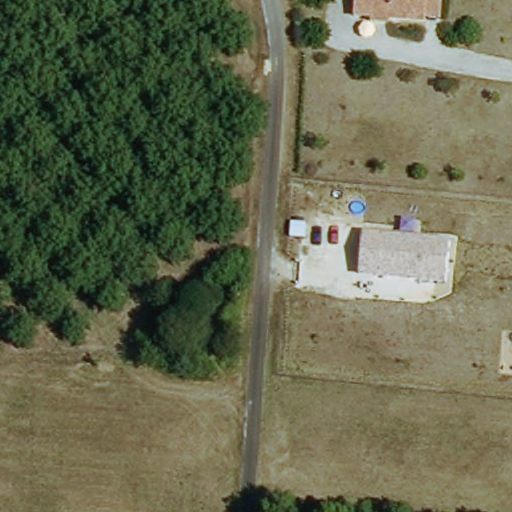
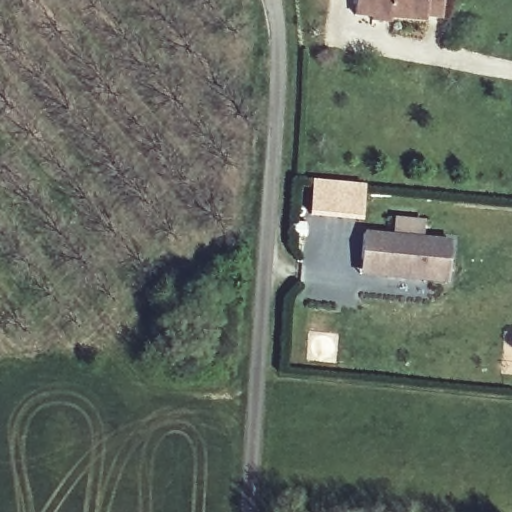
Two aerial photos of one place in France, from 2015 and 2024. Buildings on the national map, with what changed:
unchanged [(376,24),(377,18),(360,16),(362,0),(448,0),(446,21),(431,20),(431,24),(397,20),(397,25),(376,24)]
new [(311,177),(365,183),(362,218),(307,214),(311,177)]
unchanged [(452,240),(448,285),(359,276),(364,230),(452,240)]

